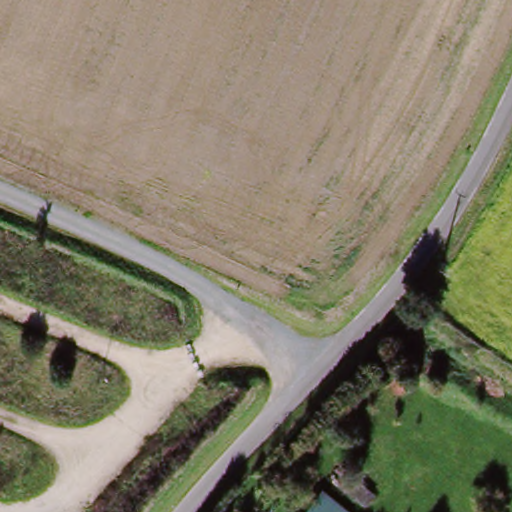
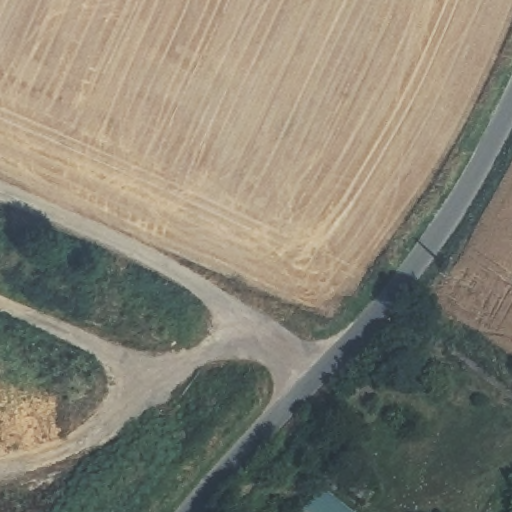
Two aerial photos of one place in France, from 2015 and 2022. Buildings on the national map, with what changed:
unchanged [(368,501),(344,480),(352,470),(377,490),(368,501)]
unchanged [(339,512),(304,512),(319,495),(339,512)]

